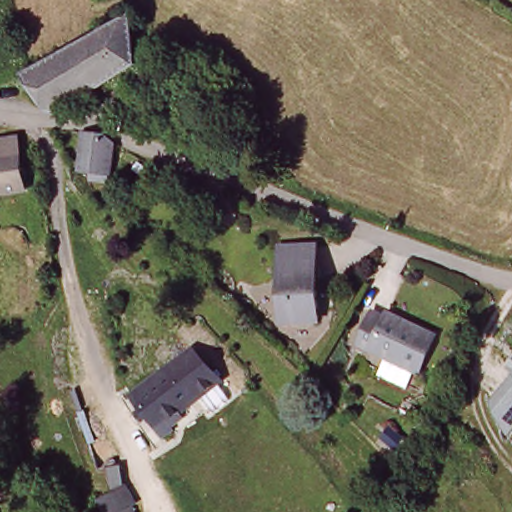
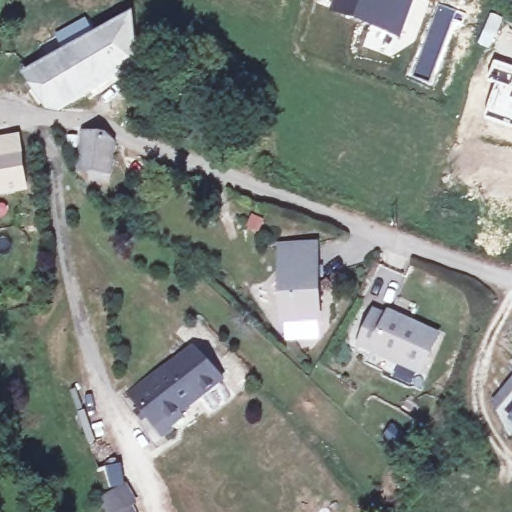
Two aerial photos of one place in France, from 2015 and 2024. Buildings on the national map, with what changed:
new [(376,29),(332,13),(337,0),(416,0),(402,39),(376,29)]
unchanged [(63,110),(50,109),(28,75),(136,20),(140,65),(63,110)]
new [(487,82),(495,59),(512,65),(512,126),(485,117),(495,85),(487,82)]
unchanged [(117,179),(97,177),(97,167),(82,165),(85,129),(102,132),(117,141),(117,179)]
unchanged [(32,190),(0,195),(0,157),(6,156),(4,140),(25,137),(32,190)]
unchanged [(316,320),(278,321),(275,245),(313,244),(316,320)]
unchanged [(422,377),(360,348),(376,316),(388,322),(390,318),(440,341),(422,377)]
unchanged [(225,376),(170,418),(177,427),(167,433),(127,388),(200,343),(225,376)]
unchanged [(107,415),(115,434),(100,442),(92,422),(107,415)]
unchanged [(125,485),(134,502),(129,505),(132,512),(104,512),(97,499),(125,485)]

